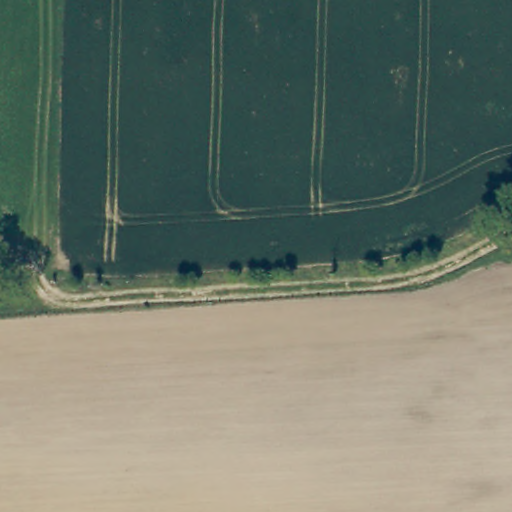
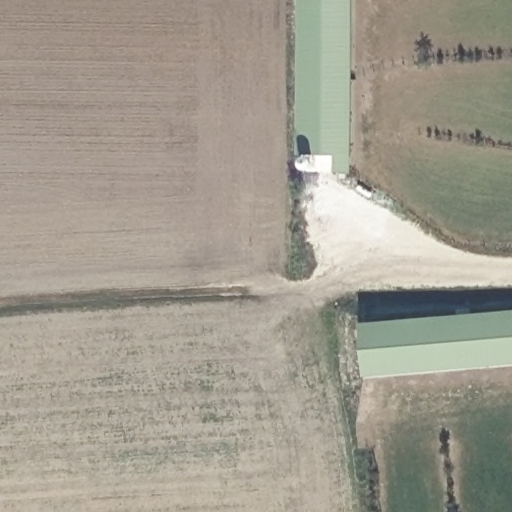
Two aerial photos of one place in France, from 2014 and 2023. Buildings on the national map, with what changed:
new [(301,0),(354,0),(352,173),(335,173),(336,156),(300,155),(301,0)]
new [(512,311),(512,363),(368,373),(364,323),(512,311)]

